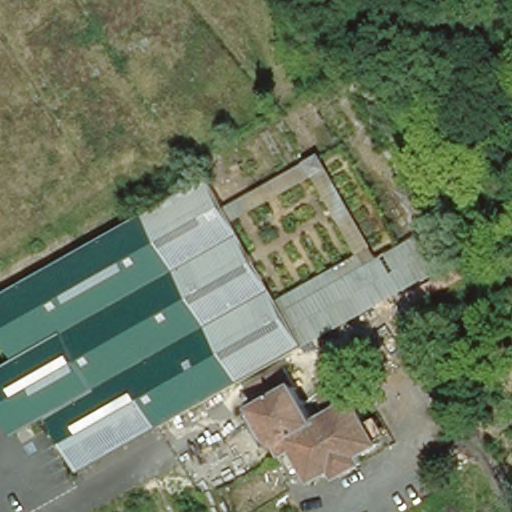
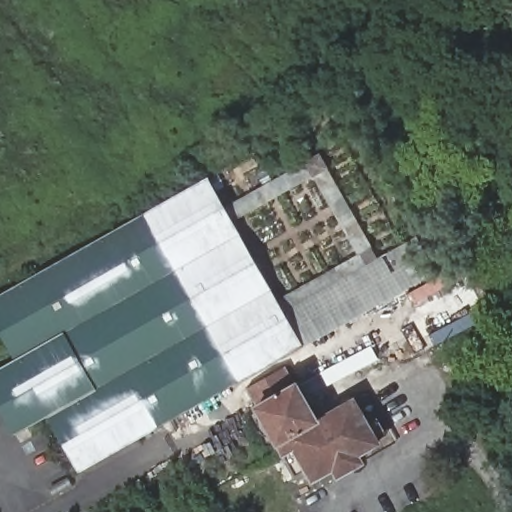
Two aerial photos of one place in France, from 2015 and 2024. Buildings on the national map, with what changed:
unchanged [(77,476),(44,418),(12,438),(0,417),(0,368),(12,362),(0,340),(0,297),(208,179),(224,211),(317,152),(376,258),(419,237),(437,271),(301,351),(77,476)]
unchanged [(460,323),(433,335),(416,295),(447,281),(460,323)]
unchanged [(358,457),(362,467),(333,481),(330,474),(308,486),(303,477),(293,480),(279,457),(273,448),(251,408),(295,382),(317,422),(317,417),(352,397),(379,447),(358,457)]

